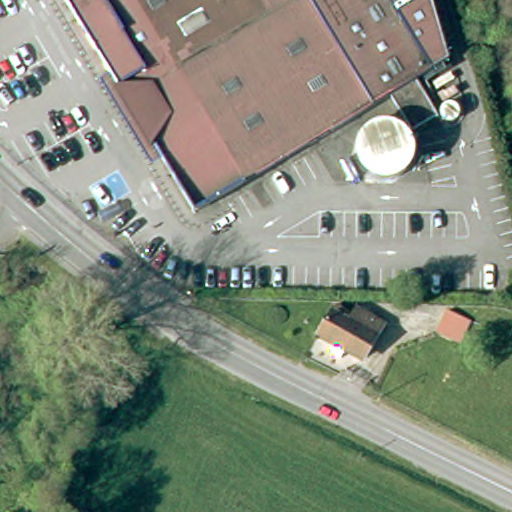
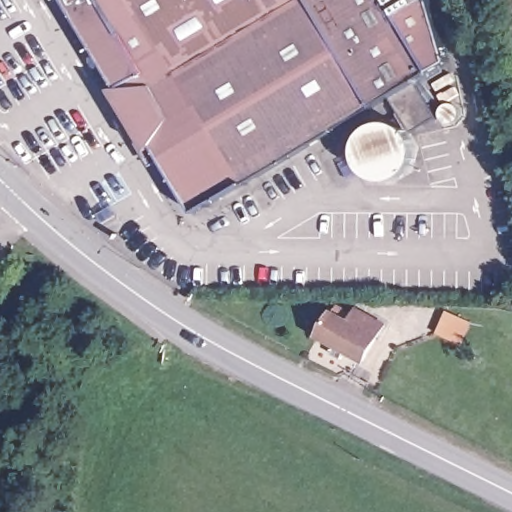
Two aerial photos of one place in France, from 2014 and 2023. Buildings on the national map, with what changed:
unchanged [(386,97),(192,216),(60,0),(426,0),(445,61),(412,81),(431,111),(437,110),(437,109),(442,104),(447,103),(452,105),(456,109),(457,115),(454,119),(451,122),(445,123),(441,121),(439,118),(431,119),(409,133),(404,126),(400,129),(405,134),(410,143),(412,151),(411,159),(408,166),(402,174),(396,178),(387,181),(377,181),(367,178),(359,171),(354,160),(352,150),(356,138),(362,130),(367,127),(377,123),(386,123),(398,116),(386,97)]
unchanged [(353,363),(307,336),(322,309),(339,318),(346,307),(376,324),(353,363)]
unchanged [(458,342),(437,331),(449,310),(469,320),(458,342)]

